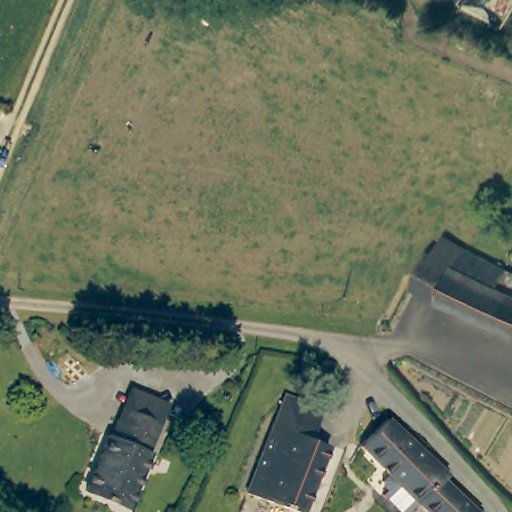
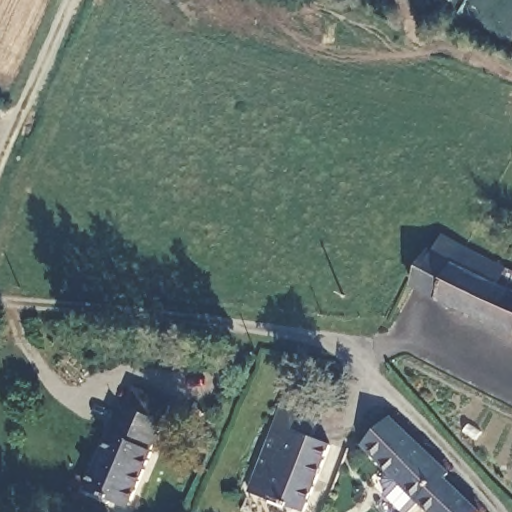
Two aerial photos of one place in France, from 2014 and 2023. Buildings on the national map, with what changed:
unchanged [(438,254),(446,237),(461,241),(509,263),(512,264),(512,334),(488,323),(414,288),(431,253),(438,254)]
unchanged [(284,390),(321,405),(310,433),(278,420),(277,420),(274,418),(284,390)]
unchanged [(124,498),(98,488),(123,427),(128,430),(134,417),(140,403),(171,418),(165,432),(160,443),(164,446),(141,497),(138,505),(124,498)]
unchanged [(381,476),(387,469),(360,441),(386,413),(420,445),(447,471),(442,476),(480,512),(431,512),(417,499),(404,512),(403,512),(381,490),(385,486),(381,481),(381,476)]
unchanged [(328,440),(327,444),(302,509),(247,488),(254,472),(274,418),(277,420),(278,420),(310,433),(328,440)]

